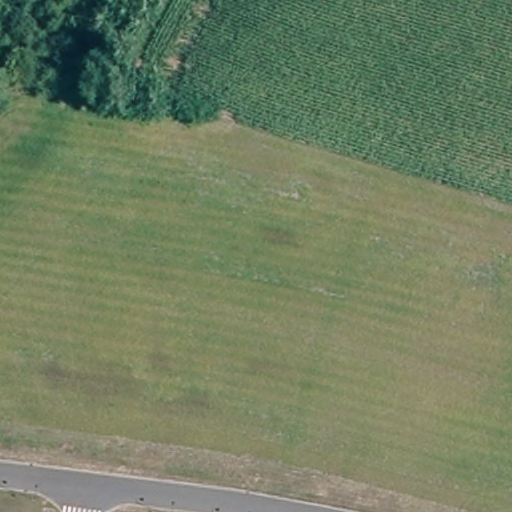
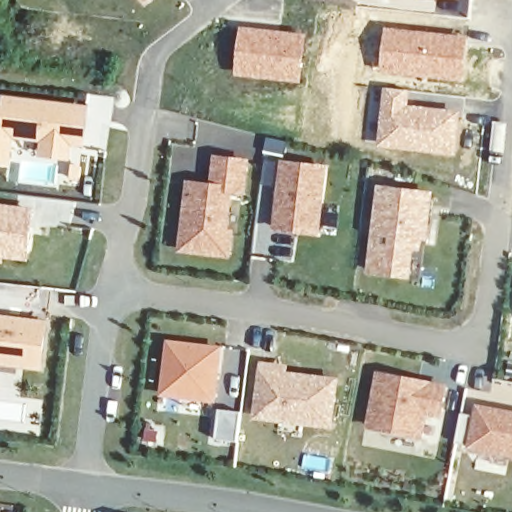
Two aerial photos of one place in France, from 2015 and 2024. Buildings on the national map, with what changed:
new [(140,0),(148,0),(143,4),(140,0)]
new [(240,27),(307,34),(301,84),(233,75),(240,27)]
new [(385,27),(468,36),(464,82),(379,71),(385,27)]
new [(383,87),(410,91),(409,102),(463,109),(456,157),(377,146),(383,87)]
new [(8,111),(8,100),(85,109),(83,140),(10,134),(7,160),(0,159),(0,110),(8,111)]
new [(249,160),(245,196),(234,195),(230,227),(234,228),(231,257),(178,252),(187,180),(211,182),(213,156),(249,160)]
new [(327,167),(320,237),(273,232),(280,160),(327,167)]
new [(434,191),(429,241),(423,240),(422,252),(415,252),(412,279),(366,273),(378,185),(434,191)]
new [(36,208),(30,262),(0,258),(0,203),(36,208)]
new [(50,321),(44,371),(0,366),(0,315),(50,321)]
new [(224,346),(217,404),(161,397),(167,340),(224,346)]
new [(285,367),(285,375),(337,381),(331,426),(303,422),(301,436),(276,432),(279,418),(257,415),(263,367),(285,367)]
new [(449,385),(443,418),(427,416),(422,440),(367,429),(377,371),(449,385)]
new [(477,405),(512,411),(512,457),(470,451),(470,446),(457,445),(462,413),(476,416),(477,405)]

